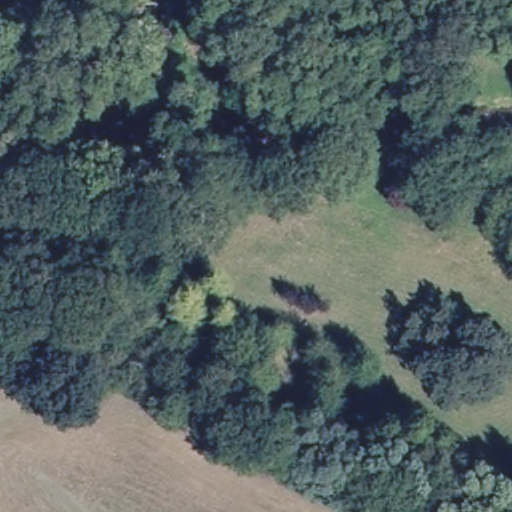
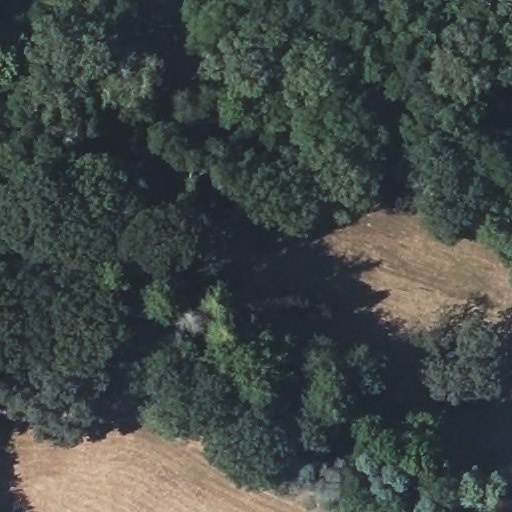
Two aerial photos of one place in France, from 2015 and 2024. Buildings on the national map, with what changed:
[]

